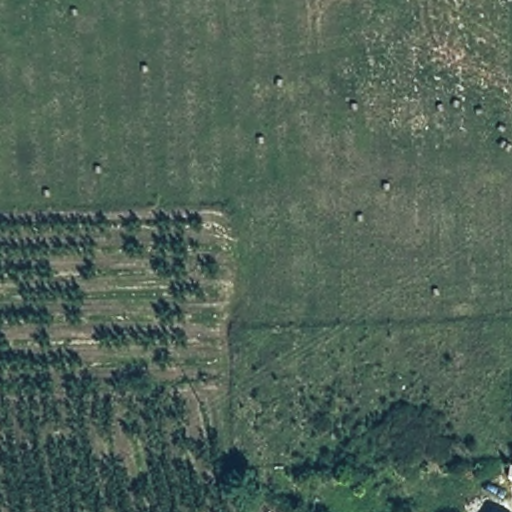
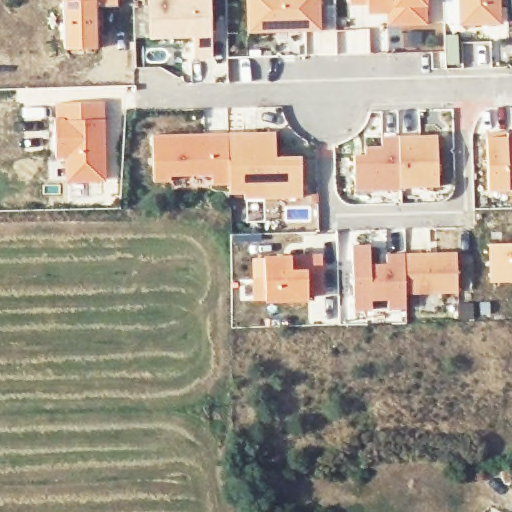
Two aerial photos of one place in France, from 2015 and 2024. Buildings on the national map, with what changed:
new [(118,6),(98,6),(98,49),(65,50),(63,0),(118,0),(118,6)]
new [(216,60),(198,60),(196,39),(153,40),(152,0),(215,0),(216,60)]
new [(249,0),(322,0),(323,33),(251,35),(249,0)]
new [(393,17),(373,18),(373,11),(372,9),(354,9),(354,0),(431,0),(432,27),(404,29),(393,29),(393,17)]
new [(502,25),(464,27),(463,0),(501,0),(502,25)]
new [(68,159),(60,159),(59,124),(108,122),(109,183),(69,184),(68,159)]
new [(282,135),(283,160),(308,160),(309,200),(261,200),(251,201),(251,195),(236,195),(236,186),(234,136),(282,135)]
new [(236,186),(218,186),(218,176),(176,177),(176,182),(159,183),(158,137),(234,136),(236,186)]
new [(512,193),(495,194),(493,136),(512,136),(512,193)]
new [(444,139),(446,189),(407,190),(404,140),(444,139)]
new [(407,190),(407,192),(361,194),(360,159),(371,159),(371,151),(388,150),(388,140),(404,140),(407,190)]
new [(408,295),(409,309),(390,310),(389,300),(374,300),(374,310),(356,310),(354,246),(373,246),(373,265),(389,265),(388,255),(407,255),(408,295)]
new [(512,284),(498,285),(497,247),(512,247),(512,284)]
new [(458,253),(459,292),(408,295),(407,255),(458,253)]
new [(326,292),(311,293),(311,299),(259,300),(259,280),(268,280),(268,259),(325,257),(326,292)]

